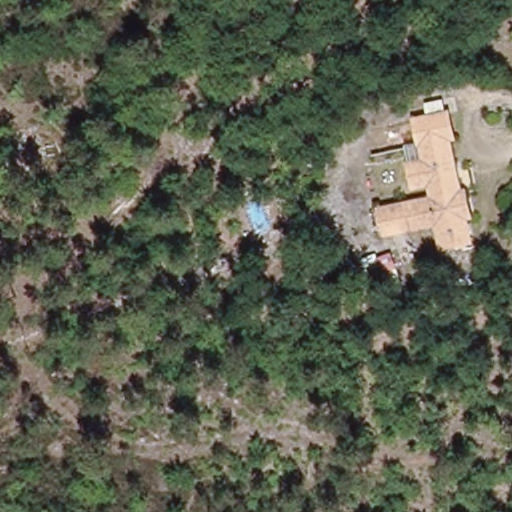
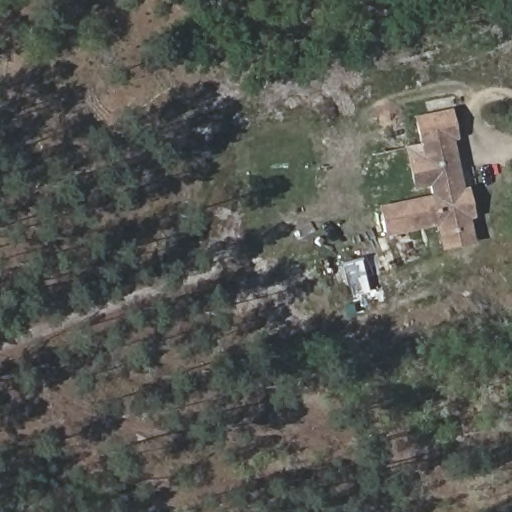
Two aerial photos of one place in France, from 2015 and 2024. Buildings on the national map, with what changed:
unchanged [(441,249),(438,224),(374,237),(366,205),(430,194),(429,185),(415,187),(409,157),(422,155),(417,116),(435,113),(432,98),(455,92),(464,138),(456,138),(465,185),(473,184),(478,217),(472,218),(476,242),(441,249)]

